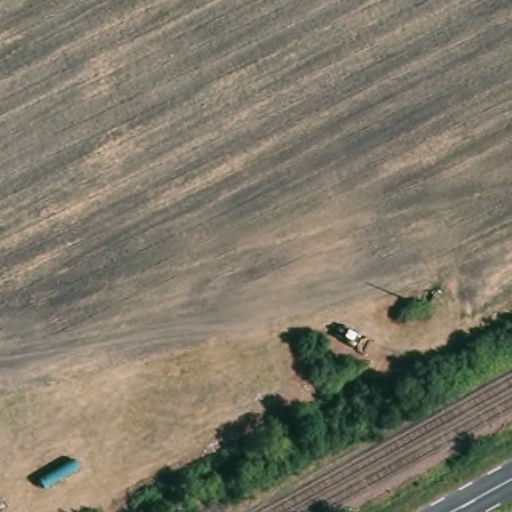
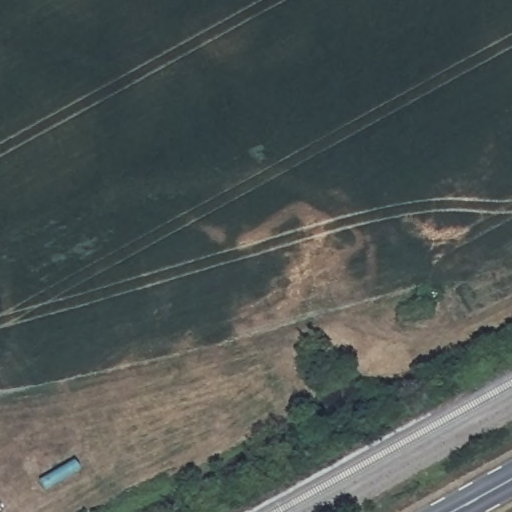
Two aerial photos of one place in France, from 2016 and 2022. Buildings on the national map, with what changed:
unchanged [(212,512),(195,512),(188,500),(195,497),(219,483),(230,502),(212,512)]

